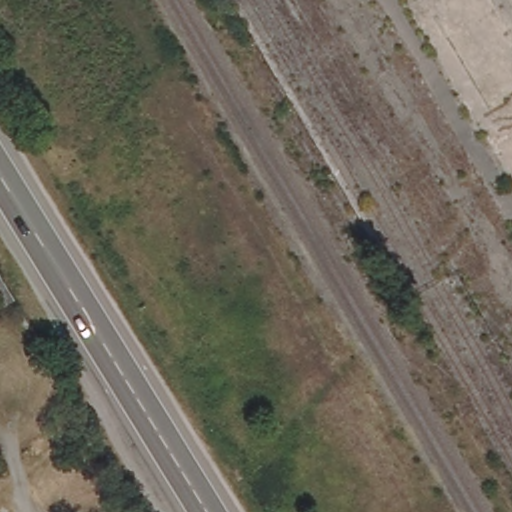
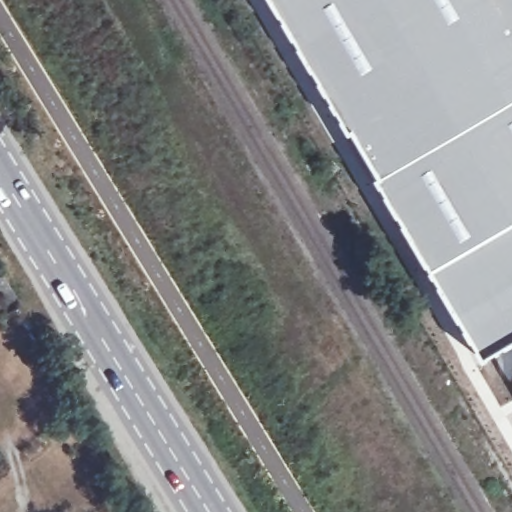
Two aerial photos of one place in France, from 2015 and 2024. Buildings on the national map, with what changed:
new [(512,366),(444,262),(407,276),(242,0),(512,0),(512,366)]

